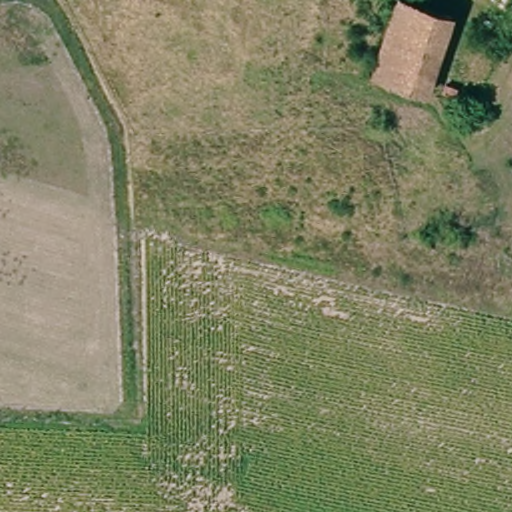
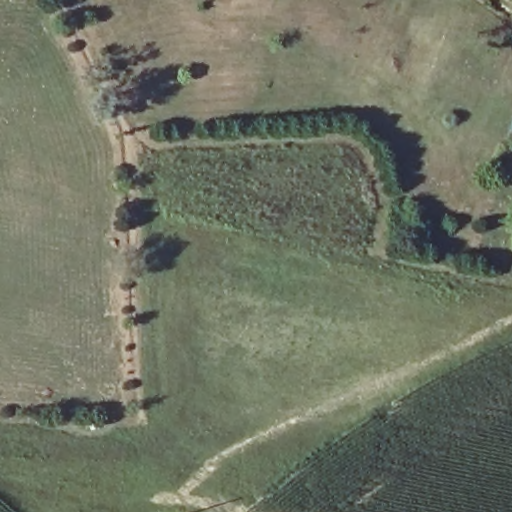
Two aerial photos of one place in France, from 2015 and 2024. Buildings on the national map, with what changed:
demolished [(452,13),(433,90),(375,79),(394,0),(397,0),(452,13)]

